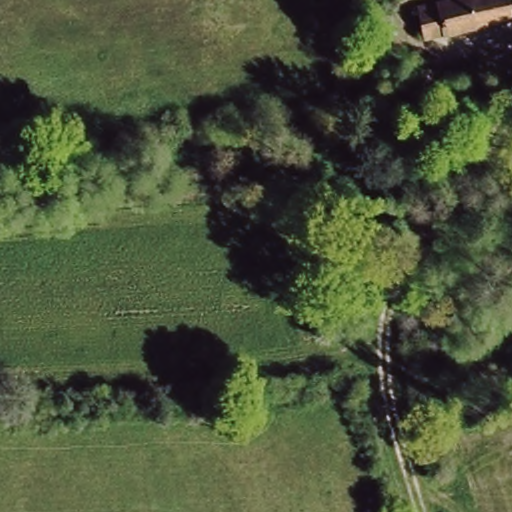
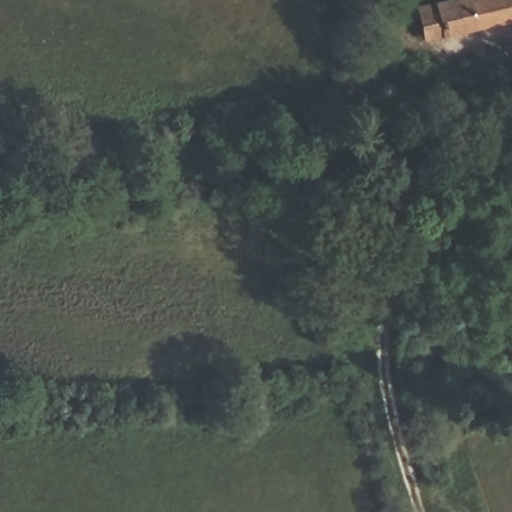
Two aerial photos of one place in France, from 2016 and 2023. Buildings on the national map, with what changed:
unchanged [(440,0),(500,0),(505,14),(434,42),(422,18),(415,21),(411,12),(440,0)]

